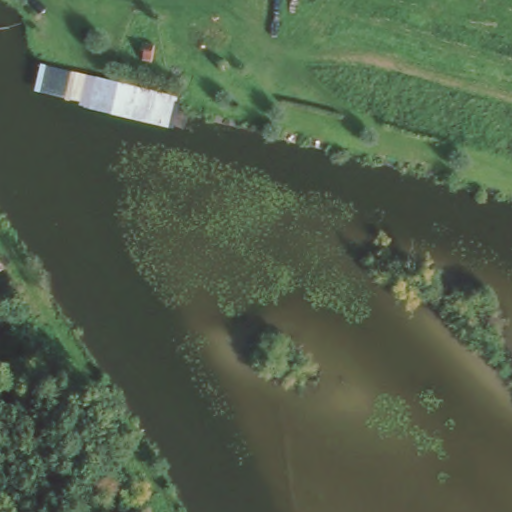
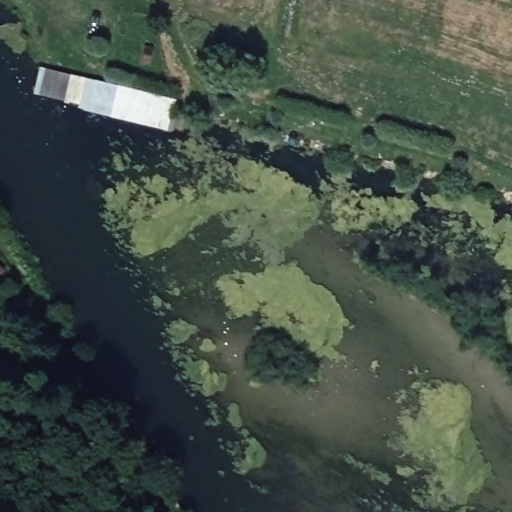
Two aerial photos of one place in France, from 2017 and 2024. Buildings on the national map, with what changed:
unchanged [(140,62),(142,41),(156,42),(155,64),(140,62)]
unchanged [(178,101),(174,129),(111,112),(39,84),(40,65),(178,101)]
unchanged [(12,275),(0,284),(0,258),(12,275)]

